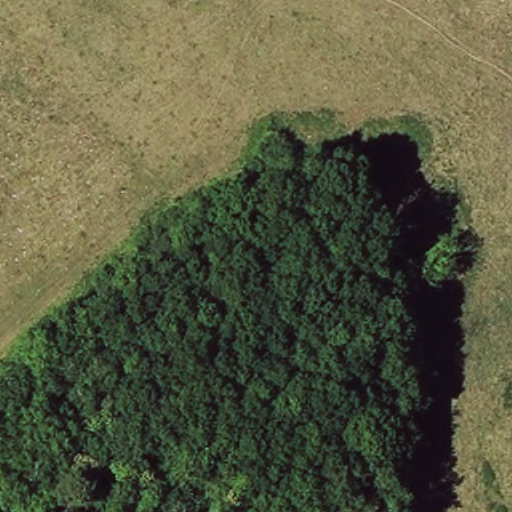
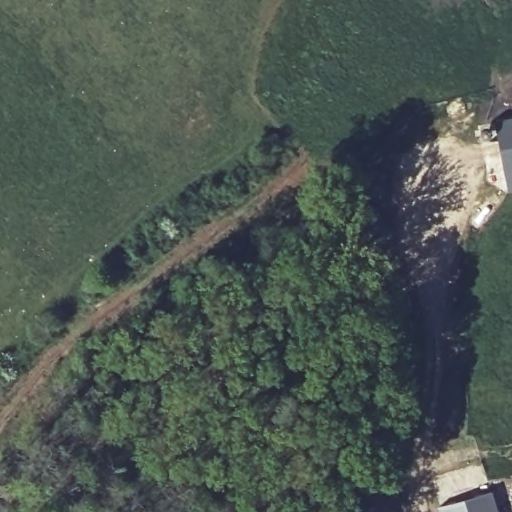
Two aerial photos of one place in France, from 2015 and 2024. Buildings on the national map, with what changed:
new [(512,118),(512,190),(507,191),(493,122),(512,118)]
new [(439,512),(438,508),(493,491),(499,512),(439,512)]

